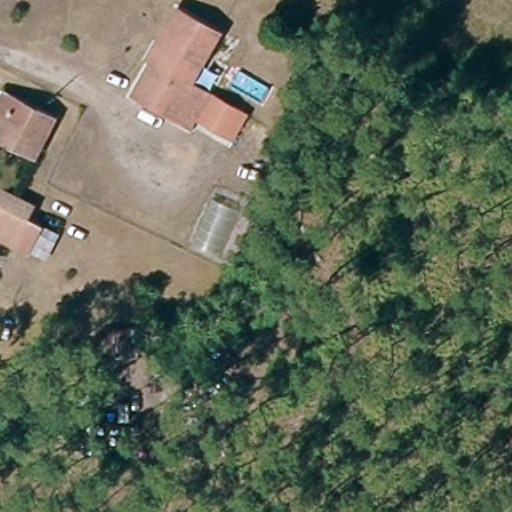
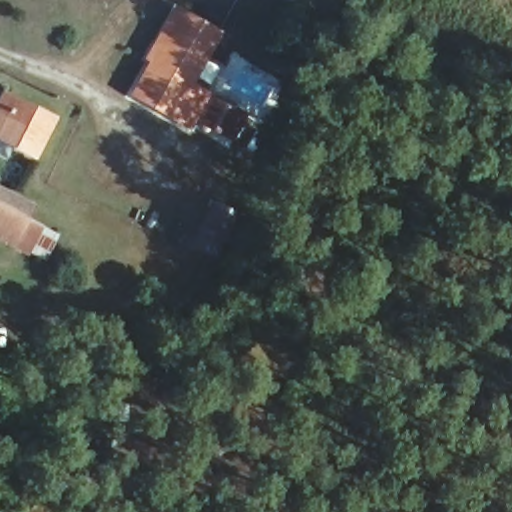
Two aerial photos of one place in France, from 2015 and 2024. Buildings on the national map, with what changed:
unchanged [(219,32),(195,89),(209,97),(192,136),(139,110),(162,69),(145,60),(167,5),(219,32)]
unchanged [(0,146),(0,116),(11,95),(54,113),(32,159),(0,146)]
unchanged [(247,117),(235,142),(197,124),(209,97),(247,117)]
unchanged [(0,245),(0,192),(36,207),(22,237),(14,252),(0,245)]

